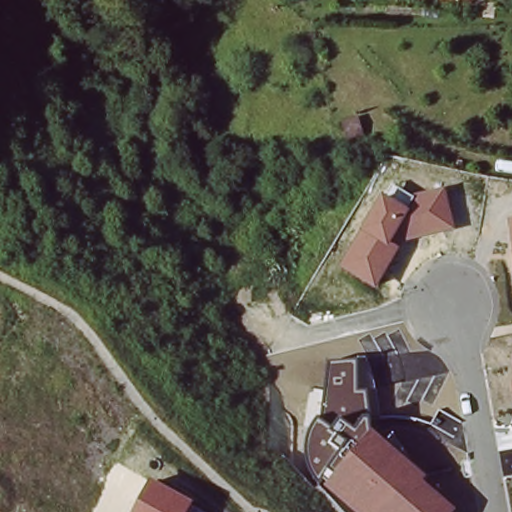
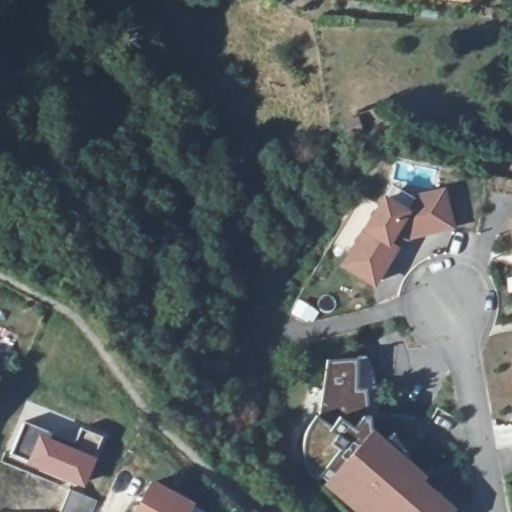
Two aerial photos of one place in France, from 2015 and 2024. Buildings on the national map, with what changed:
unchanged [(383,194),(386,196),(393,185),(411,195),(446,186),(456,230),(396,244),(401,246),(376,287),(341,266),(383,194)]
unchanged [(510,218),(512,218),(512,234),(510,218)]
unchanged [(319,481),(312,468),(307,456),(306,443),(308,433),(317,417),(329,362),(356,361),(356,391),(364,391),(368,418),(370,430),(425,478),(423,481),(455,507),(451,512),(356,512),(325,485),(319,481)]
new [(75,442),(80,427),(100,435),(91,455),(96,457),(84,487),(26,463),(27,458),(12,454),(25,422),(75,442)]
unchanged [(152,478),(194,502),(189,512),(135,512),(152,478)]

